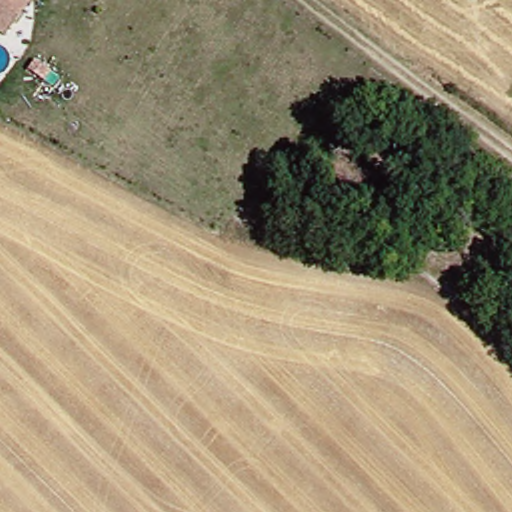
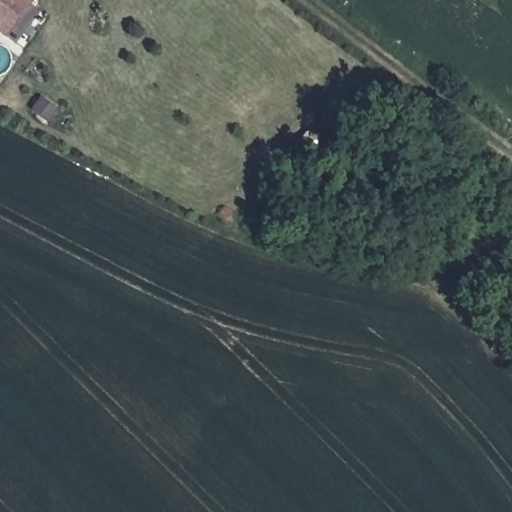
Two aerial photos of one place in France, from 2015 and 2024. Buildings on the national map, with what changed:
unchanged [(0,29),(0,0),(31,0),(32,0),(5,34),(0,29)]

